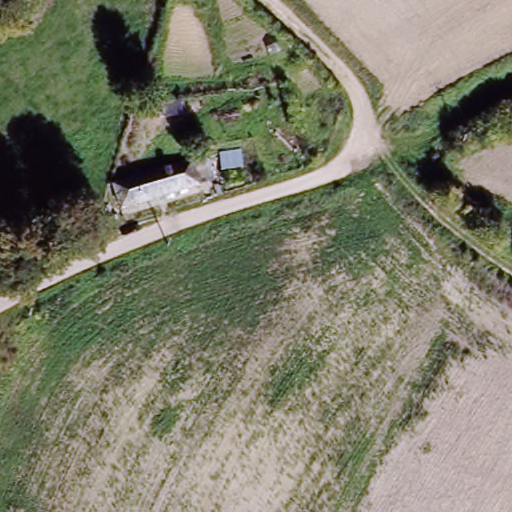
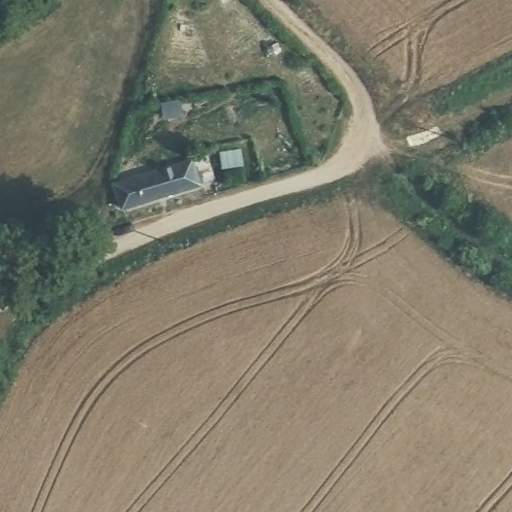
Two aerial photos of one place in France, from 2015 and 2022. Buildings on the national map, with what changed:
unchanged [(125,216),(114,184),(208,157),(215,183),(125,216)]

